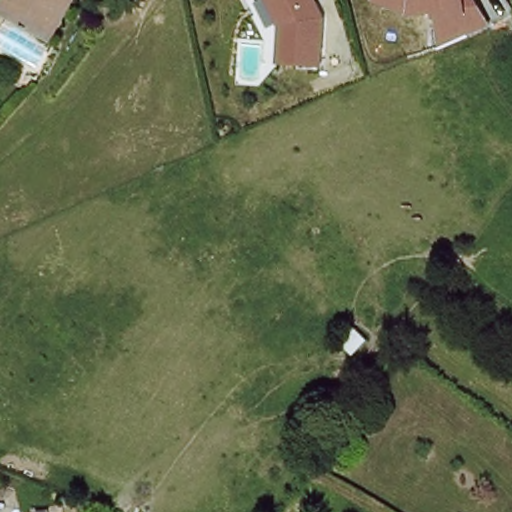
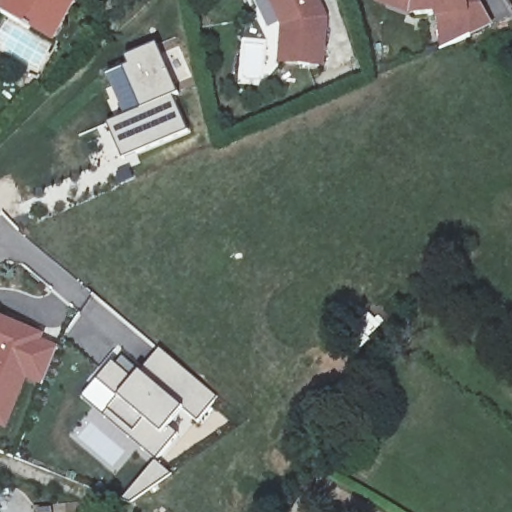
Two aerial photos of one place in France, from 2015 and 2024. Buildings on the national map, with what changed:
unchanged [(70,5),(49,43),(28,32),(26,36),(17,31),(19,27),(5,20),(16,0),(68,0),(67,2),(70,5)]
unchanged [(269,0),(321,0),(331,20),(325,69),(280,65),(284,27),(269,0)]
unchanged [(444,46),(440,20),(438,20),(437,15),(411,19),(376,2),(375,0),(480,0),(494,25),(444,46)]
new [(144,110),(126,71),(132,68),(128,60),(159,46),(179,94),(173,96),(189,130),(124,161),(109,125),(144,110)]
new [(49,335),(46,342),(62,348),(46,387),(30,380),(8,430),(0,428),(0,316),(49,335)]
new [(156,461),(85,398),(115,364),(119,366),(126,359),(143,373),(163,351),(219,398),(198,422),(185,410),(171,427),(181,435),(160,462),(173,476),(133,505),(125,500),(156,461)]
demolished [(22,500),(63,507),(62,512),(21,512),(22,500)]
new [(79,505),(79,512),(37,512),(37,507),(79,505)]

